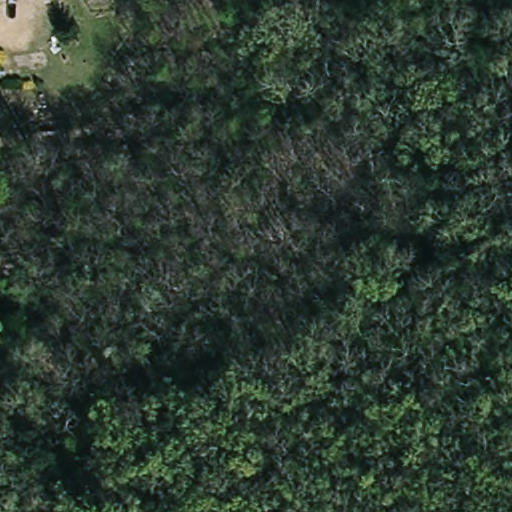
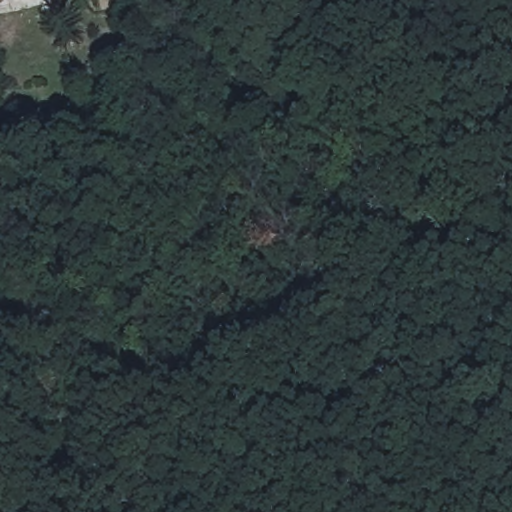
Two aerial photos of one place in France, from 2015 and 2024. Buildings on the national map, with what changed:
unchanged [(35,0),(41,0),(35,1),(35,0)]

